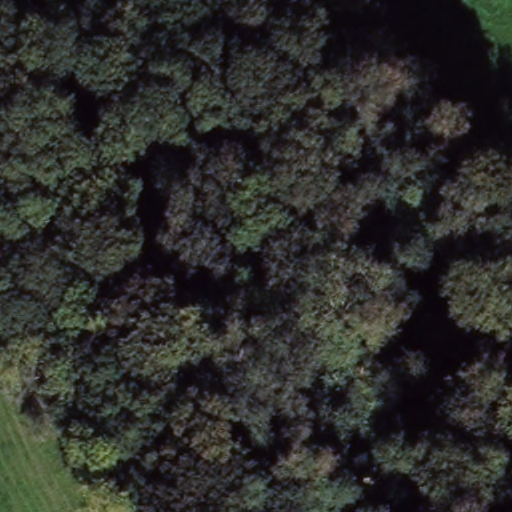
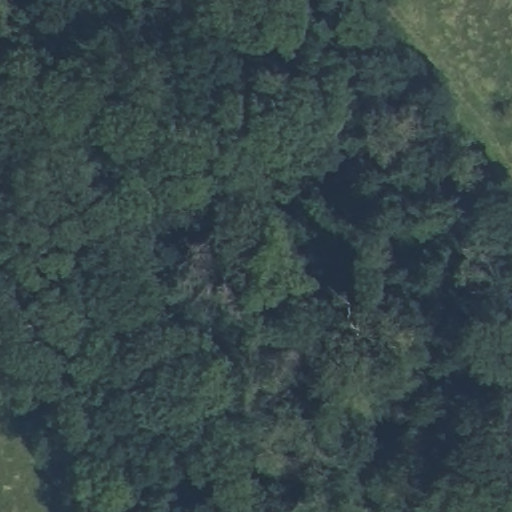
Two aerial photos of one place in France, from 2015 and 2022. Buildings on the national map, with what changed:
[]

